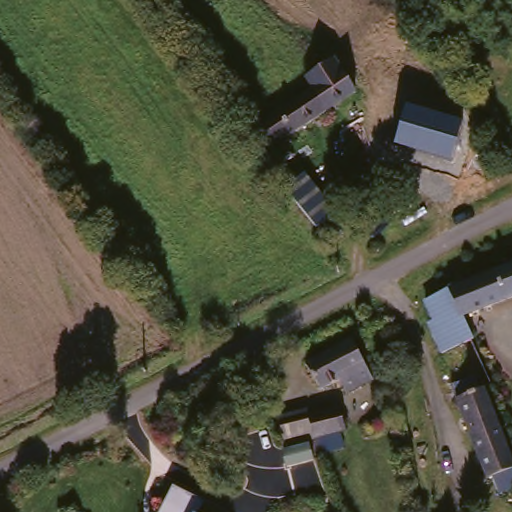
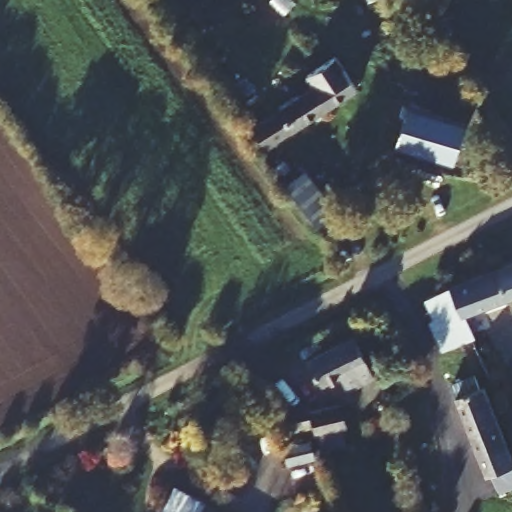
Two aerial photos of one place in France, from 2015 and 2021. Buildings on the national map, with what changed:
unchanged [(258,124),(321,85),(313,74),(325,67),(343,55),(344,57),(363,87),(350,96),(271,145),(258,124)]
unchanged [(396,144),(407,105),(463,122),(451,161),(396,144)]
unchanged [(466,313),(455,286),(512,263),(512,296),(466,313)]
unchanged [(443,347),(429,317),(436,314),(428,293),(455,286),(466,313),(474,333),(471,336),(443,347)]
unchanged [(376,378),(351,393),(343,378),(323,391),(306,361),(350,336),(376,378)]
unchanged [(496,468),(492,470),(461,390),(458,381),(483,370),(487,381),(512,440),(512,478),(501,482),(496,468)]
unchanged [(283,440),(278,414),(311,407),(311,412),(339,403),(346,427),(283,440)]
unchanged [(174,488),(211,506),(209,512),(162,512),(174,488)]

